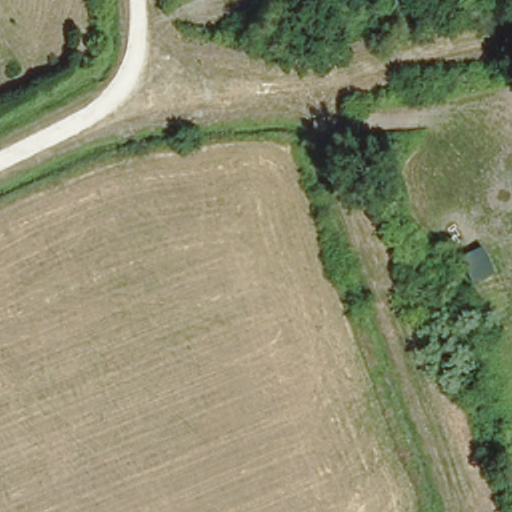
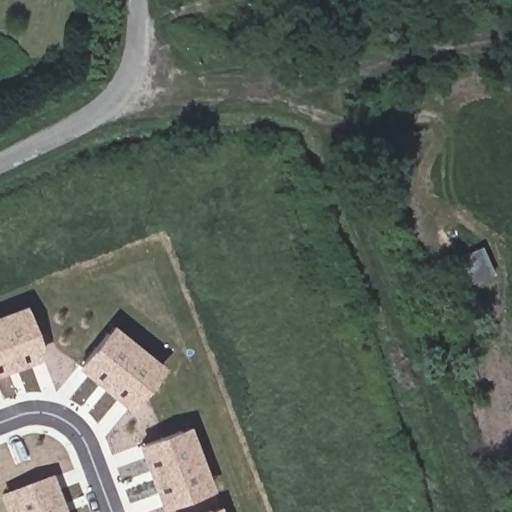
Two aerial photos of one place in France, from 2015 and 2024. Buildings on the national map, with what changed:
new [(0,373),(0,314),(27,304),(46,356),(0,373)]
new [(130,409),(78,366),(113,323),(166,366),(147,389),(130,409)]
new [(137,445),(190,425),(214,489),(161,509),(137,445)]
new [(4,512),(0,502),(0,496),(50,477),(63,512),(4,512)]
new [(223,512),(199,512),(220,504),(223,512)]

